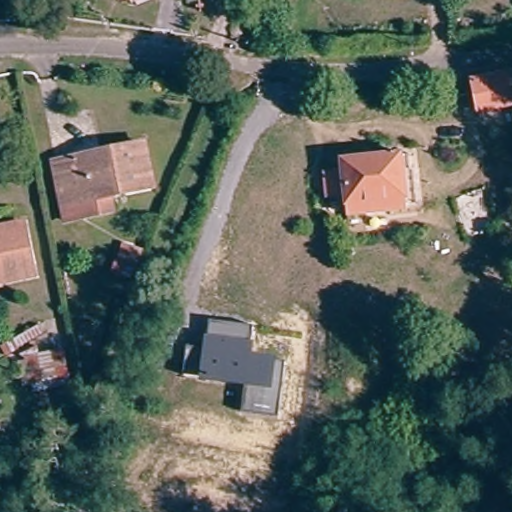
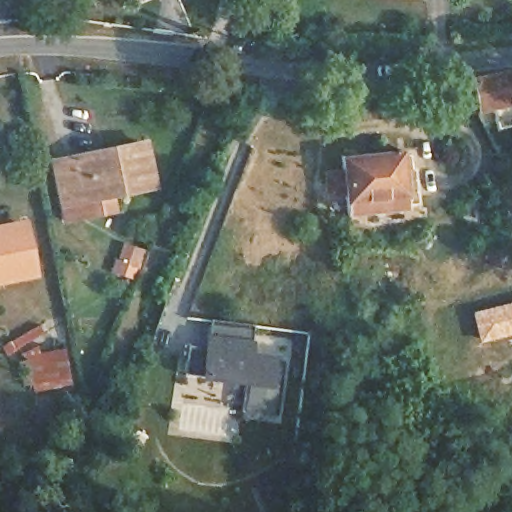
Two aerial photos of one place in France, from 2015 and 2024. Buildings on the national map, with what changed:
unchanged [(137,0),(135,1),(134,0),(137,0)]
unchanged [(512,73),(512,102),(477,108),(472,80),(512,73)]
unchanged [(65,224),(60,200),(51,156),(136,139),(145,183),(109,190),(113,206),(114,214),(65,224)]
unchanged [(321,187),(320,172),(338,170),(337,155),(394,150),(403,149),(404,164),(405,178),(398,178),(400,189),(340,193),(335,194),(322,195),(321,187)]
unchanged [(400,189),(398,178),(405,178),(408,204),(342,209),(340,193),(400,189)]
unchanged [(33,273),(5,279),(0,280),(0,227),(21,222),(33,273)]
unchanged [(144,250),(137,268),(132,280),(118,275),(121,267),(116,266),(125,243),(144,250)]
new [(512,301),(512,337),(478,345),(470,312),(512,301)]
unchanged [(253,325),(251,340),(254,340),(253,353),(277,356),(276,360),(285,361),(278,416),(242,411),(245,383),(184,374),(187,345),(204,347),(205,335),(208,336),(209,320),(253,325)]
unchanged [(39,325),(44,334),(12,354),(6,345),(39,325)]
unchanged [(36,346),(38,353),(65,350),(69,374),(21,384),(15,358),(36,346)]

